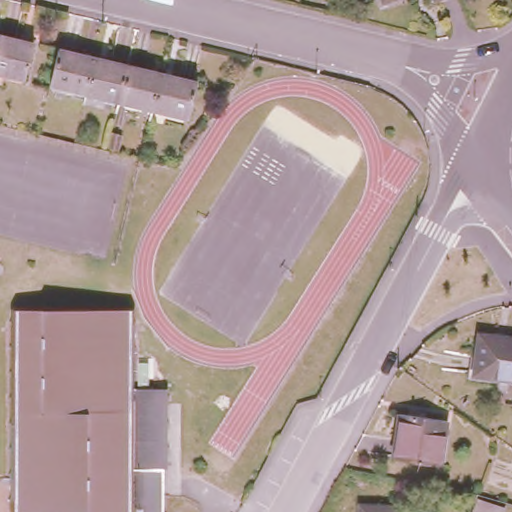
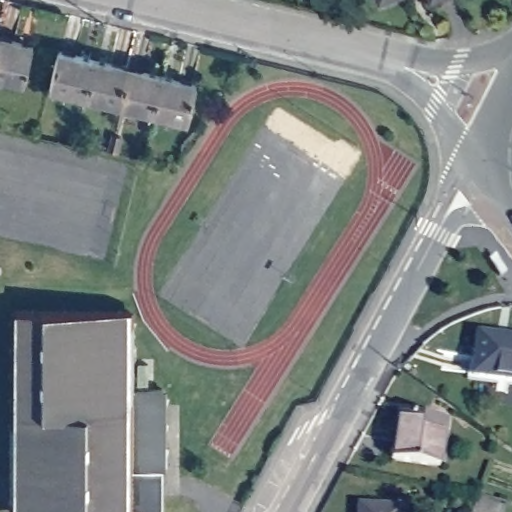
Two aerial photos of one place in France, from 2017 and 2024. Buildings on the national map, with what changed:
unchanged [(24,85),(0,79),(0,41),(32,48),(24,85)]
unchanged [(95,58),(87,93),(50,85),(59,49),(95,58)]
unchanged [(129,66),(120,101),(87,93),(95,58),(129,66)]
unchanged [(162,74),(154,109),(120,101),(129,66),(162,74)]
unchanged [(197,81),(189,118),(154,109),(162,74),(197,81)]
unchanged [(137,314),(135,390),(135,471),(167,471),(167,512),(17,512),(19,312),(137,314)]
unchanged [(512,340),(512,382),(477,378),(483,336),(512,340)]
unchanged [(165,387),(167,471),(135,471),(135,390),(165,387)]
unchanged [(447,423),(442,468),(396,461),(402,417),(447,423)]
unchanged [(475,502),(499,508),(498,512),(466,512),(470,500),(475,502)]
unchanged [(405,510),(404,512),(362,512),(362,507),(405,510)]

